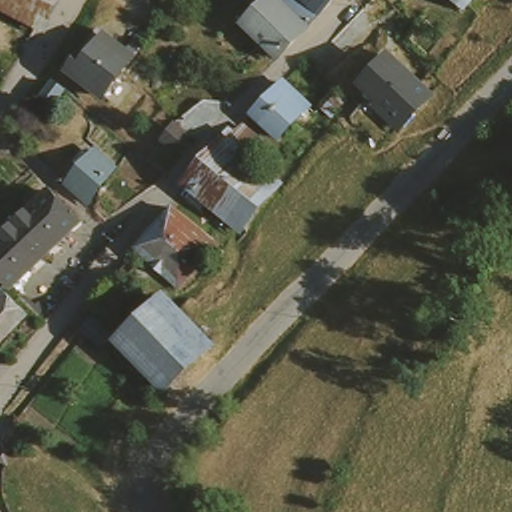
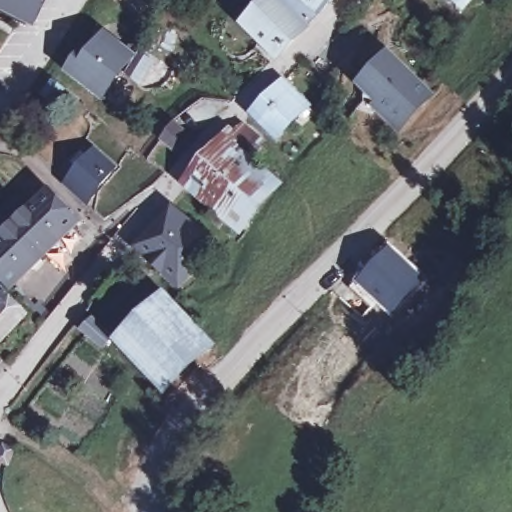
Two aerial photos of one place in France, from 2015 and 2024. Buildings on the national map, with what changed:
unchanged [(0,13),(0,0),(47,0),(33,29),(0,13)]
unchanged [(273,53),(240,20),(261,0),(274,0),(288,13),(302,0),(312,11),(273,53)]
unchanged [(323,0),(312,11),(302,0),(323,0)]
unchanged [(125,38),(133,44),(120,60),(93,96),(60,71),(74,54),(88,36),(94,40),(112,54),(125,38)]
new [(2,41),(0,42),(0,39),(2,41)]
unchanged [(434,96),(399,132),(373,109),(378,104),(359,86),(390,52),(434,96)]
unchanged [(66,91),(59,99),(50,109),(39,99),(54,81),(60,86),(66,91)]
unchanged [(298,105),(268,138),(245,117),(263,97),(274,84),(298,105)]
unchanged [(189,138),(176,155),(160,141),(172,125),(189,138)]
unchanged [(259,145),(245,161),(274,185),(232,229),(198,204),(180,188),(184,182),(220,141),(225,144),(240,128),(259,145)]
unchanged [(104,161),(79,196),(62,181),(88,145),(104,161)]
unchanged [(74,226),(9,292),(0,283),(0,242),(45,196),(74,226)]
unchanged [(213,245),(171,288),(130,250),(139,239),(165,213),(168,209),(213,245)]
new [(389,243),(426,279),(390,316),(353,281),(389,243)]
unchanged [(188,298),(163,326),(196,352),(160,395),(107,336),(150,290),(164,304),(177,288),(188,298)]
unchanged [(21,319),(0,339),(0,302),(3,299),(21,319)]
unchanged [(107,337),(97,346),(88,336),(99,326),(107,337)]
unchanged [(15,448),(11,463),(0,460),(0,448),(1,444),(15,448)]

